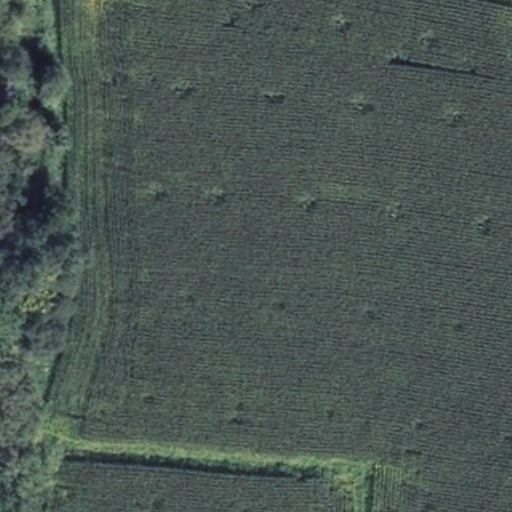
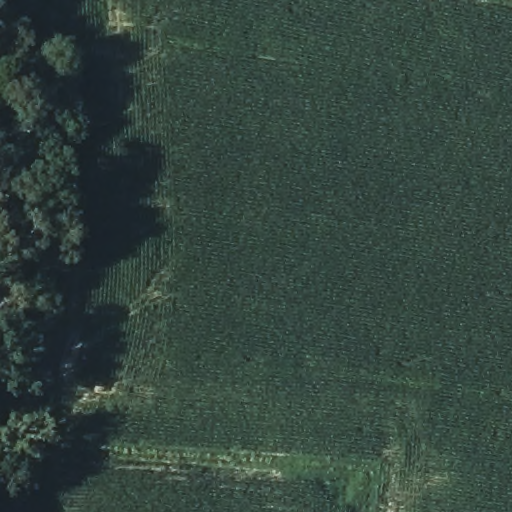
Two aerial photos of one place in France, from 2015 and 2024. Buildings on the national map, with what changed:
[]

